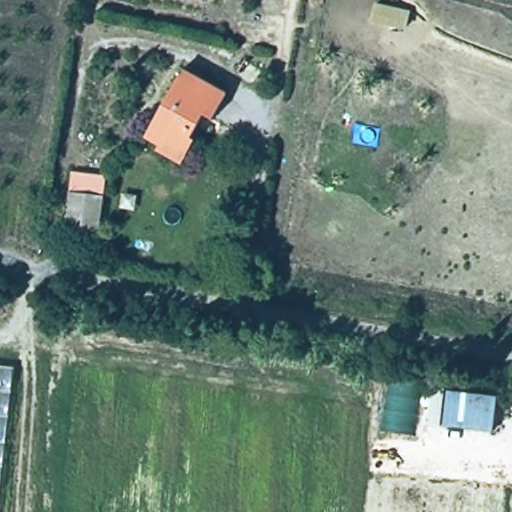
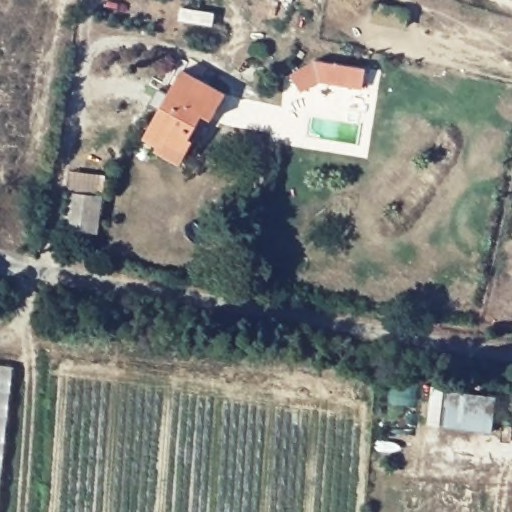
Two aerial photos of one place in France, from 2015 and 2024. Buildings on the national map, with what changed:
new [(363,90),(319,81),(301,92),(289,75),(315,60),(366,68),(363,90)]
unchanged [(221,99),(210,120),(202,117),(188,141),(192,144),(179,166),(156,154),(158,148),(144,140),(181,75),(221,99)]
unchanged [(101,177),(95,233),(63,230),(70,174),(101,177)]
demolished [(0,309),(0,284),(3,285),(0,309)]
unchanged [(0,420),(0,368),(5,368),(0,420)]
unchanged [(447,396),(442,422),(405,417),(409,391),(447,396)]
unchanged [(504,405),(501,433),(463,426),(466,398),(504,405)]

